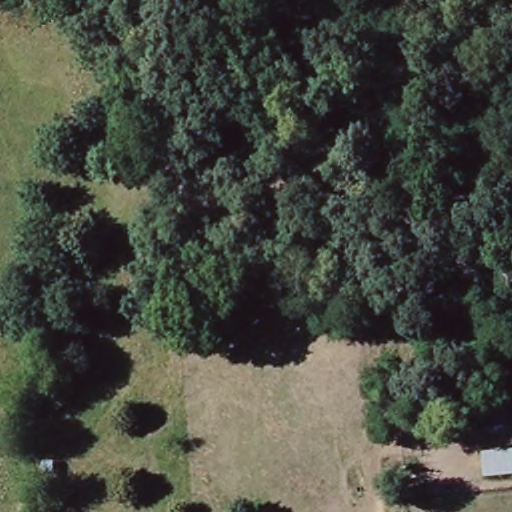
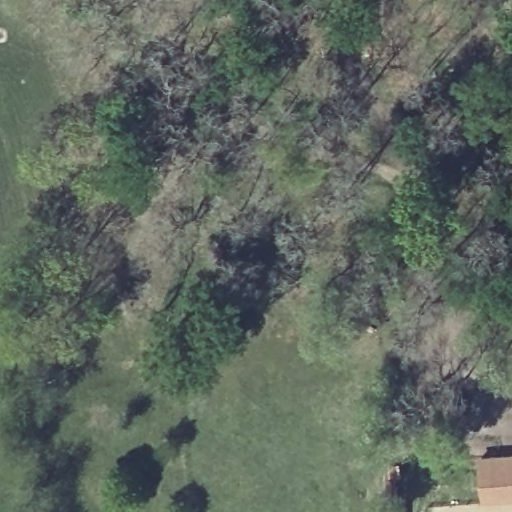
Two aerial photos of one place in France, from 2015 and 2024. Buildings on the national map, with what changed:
new [(512,501),(479,504),(473,456),(512,453),(512,501)]

